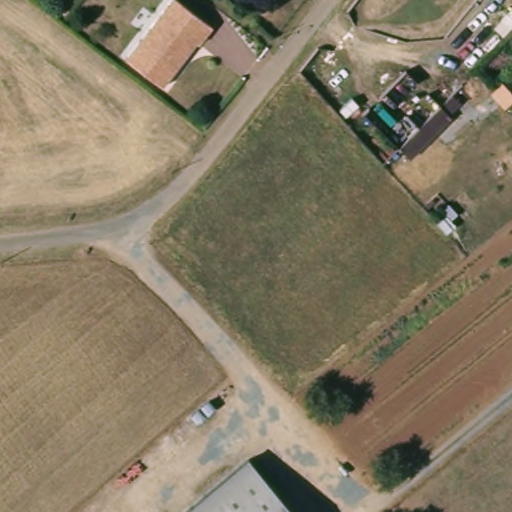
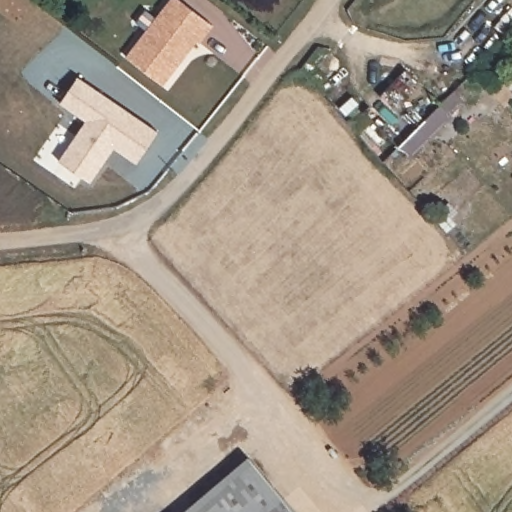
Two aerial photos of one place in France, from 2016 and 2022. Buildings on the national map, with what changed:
unchanged [(168,0),(178,0),(210,25),(197,42),(192,38),(177,58),(177,62),(160,84),(125,56),(168,0)]
new [(58,161),(85,122),(60,103),(78,77),(159,132),(136,165),(113,149),(90,183),(58,161)]
unchanged [(294,512),(188,512),(247,459),(294,512)]

